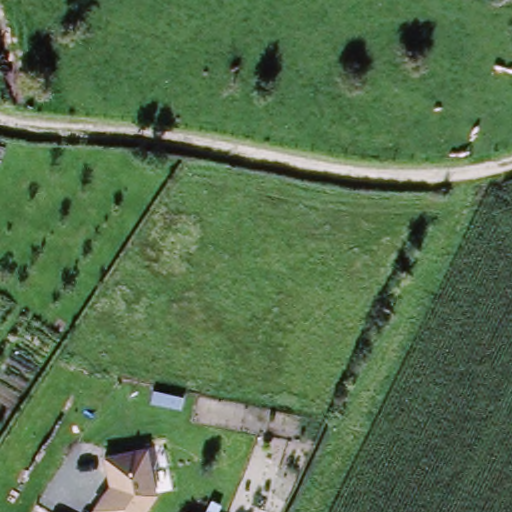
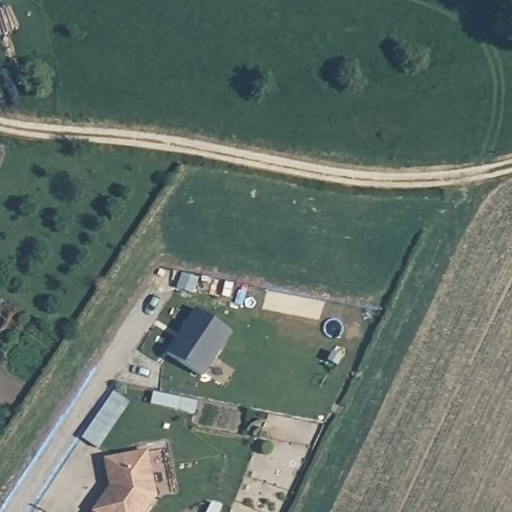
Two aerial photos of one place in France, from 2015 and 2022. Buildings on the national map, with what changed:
new [(235,333),(204,379),(165,356),(195,310),(235,333)]
unchanged [(146,454),(158,498),(149,512),(99,512),(112,491),(105,465),(146,454)]

